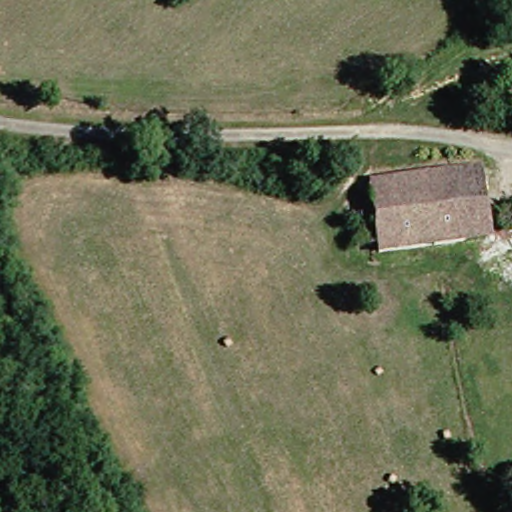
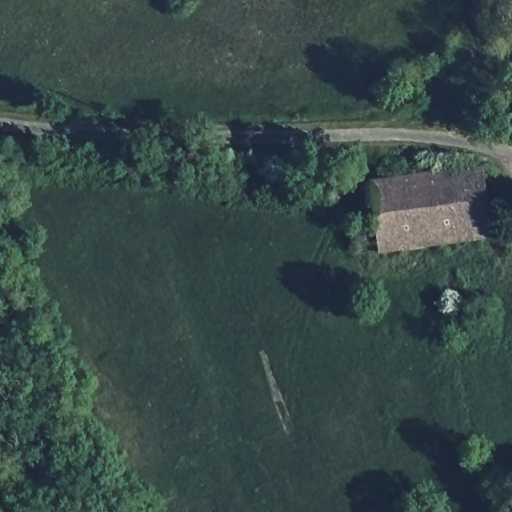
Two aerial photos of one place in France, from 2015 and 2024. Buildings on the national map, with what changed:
unchanged [(470,170),(486,240),(451,247),(440,175),(470,170)]
unchanged [(451,247),(371,262),(354,191),(440,175),(451,247)]

